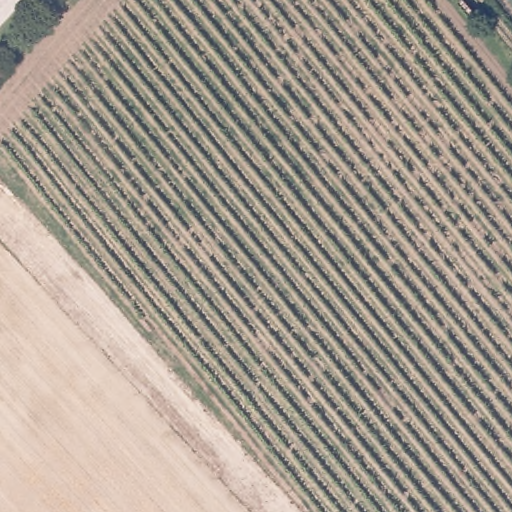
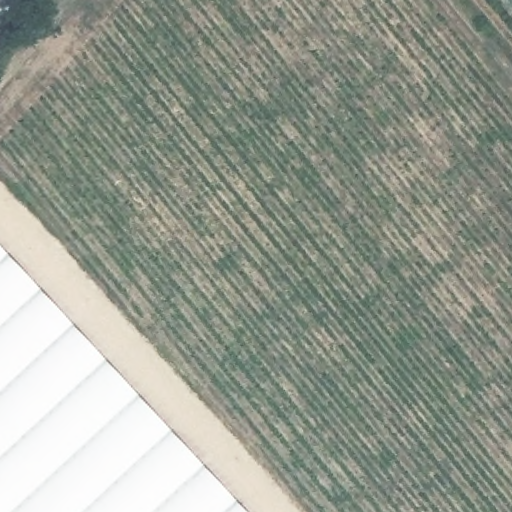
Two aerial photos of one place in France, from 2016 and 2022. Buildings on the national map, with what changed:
new [(0,244),(247,512),(0,512),(0,244)]

